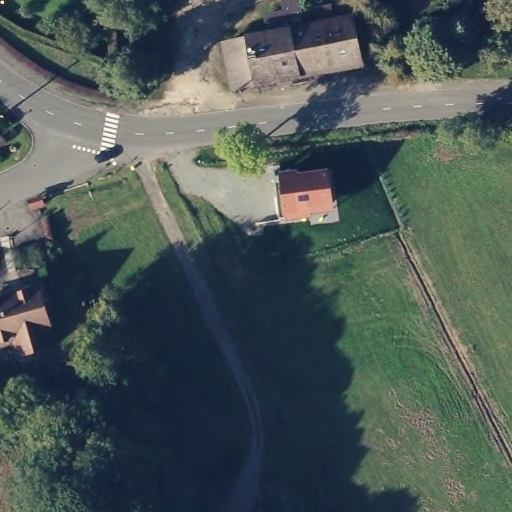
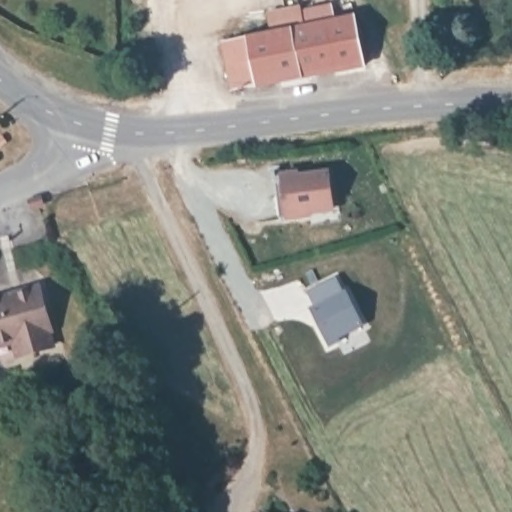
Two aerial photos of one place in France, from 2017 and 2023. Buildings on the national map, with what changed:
unchanged [(225,38),(272,29),(267,9),(285,6),(283,0),(299,0),(300,8),(330,2),(332,16),(354,12),(364,60),(283,76),(258,81),(257,79),(234,83),(225,38)]
unchanged [(312,215),(312,219),(286,222),(285,218),(282,219),(277,185),(281,184),(280,173),(299,170),(299,173),(330,169),(335,213),(312,215)]
unchanged [(30,201),(41,197),(43,205),(32,208),(30,201)]
unchanged [(39,277),(51,321),(49,322),(52,336),(17,346),(14,331),(0,335),(0,288),(39,277)]
new [(340,278),(348,293),(351,291),(367,324),(343,336),(345,339),(333,345),(315,309),(320,306),(312,292),(340,278)]

